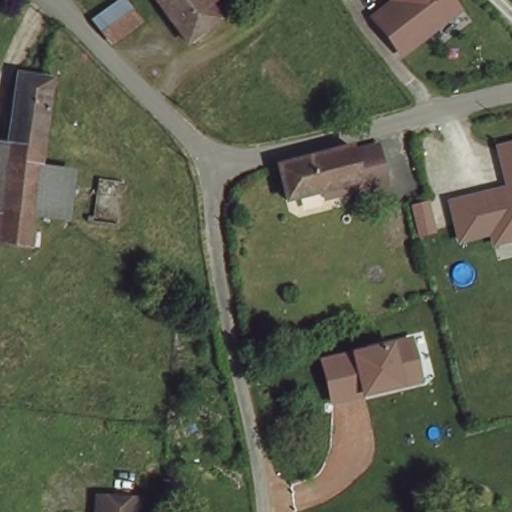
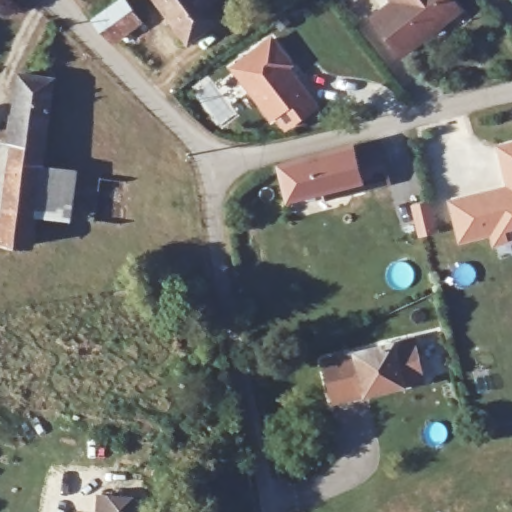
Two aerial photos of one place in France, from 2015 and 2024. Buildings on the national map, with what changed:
unchanged [(142,15),(109,41),(92,17),(113,0),(132,0),(142,15)]
unchanged [(220,14),(186,42),(155,0),(208,0),(220,14)]
unchanged [(455,4),(395,44),(369,7),(380,0),(451,0),(455,4)]
new [(269,36),(292,65),(289,68),(318,105),(284,131),(275,118),(270,122),(228,67),(269,36)]
unchanged [(0,208),(6,209),(17,137),(27,72),(57,76),(43,165),(60,168),(75,170),(69,214),(55,212),(37,209),(36,214),(32,238),(0,233),(0,208)]
unchanged [(447,194),(500,179),(489,134),(512,130),(512,239),(497,244),(494,233),(455,238),(447,194)]
unchanged [(329,191),(311,194),(310,187),(272,195),(265,165),(339,144),(340,150),(365,145),(371,174),(372,182),(329,191)]
unchanged [(355,353),(355,351),(395,342),(417,337),(426,381),(405,387),(405,385),(366,394),(367,397),(335,404),(324,359),(355,353)]
unchanged [(174,512),(157,512),(157,495),(158,474),(175,474),(174,512)]
unchanged [(142,498),(141,512),(95,512),(97,492),(142,498)]

